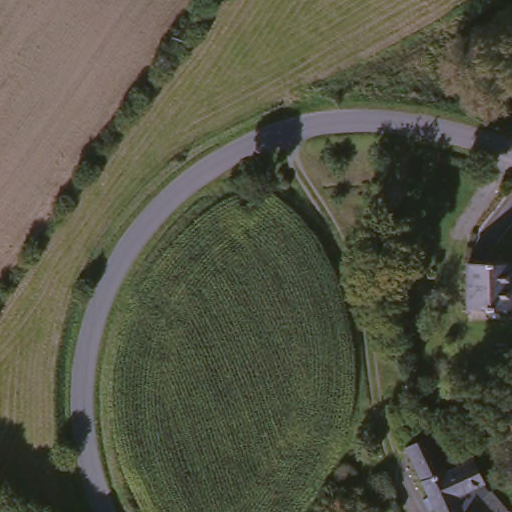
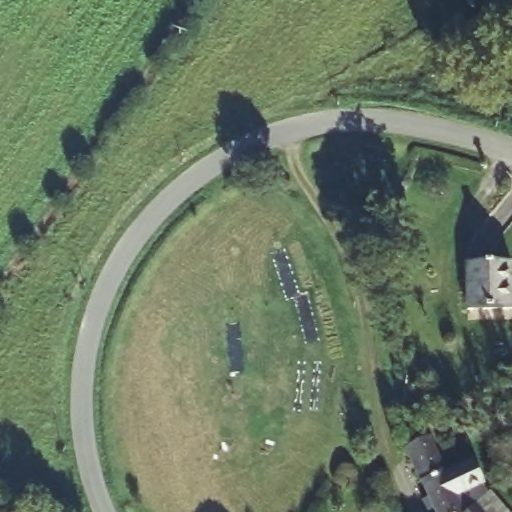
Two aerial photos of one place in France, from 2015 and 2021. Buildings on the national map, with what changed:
unchanged [(512,255),(512,310),(465,312),(462,257),(512,255)]
unchanged [(408,452),(422,446),(430,443),(441,473),(442,476),(476,462),(486,486),(477,490),(483,499),(492,512),(432,512),(408,452)]

